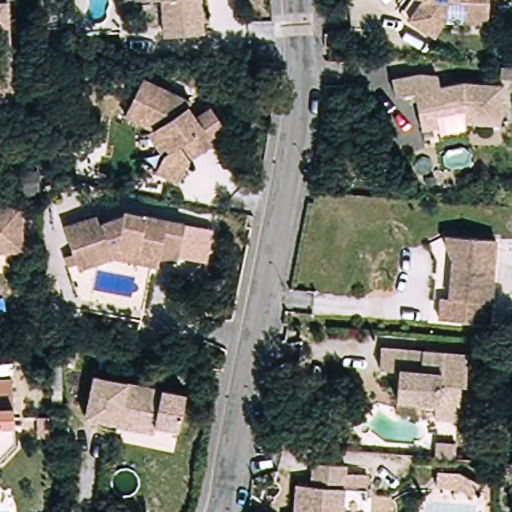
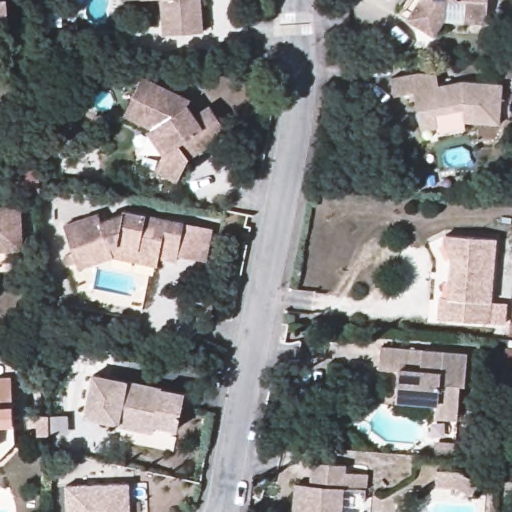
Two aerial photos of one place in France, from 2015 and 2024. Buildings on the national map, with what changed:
unchanged [(161,39),(158,1),(139,3),(139,0),(181,0),(196,0),(199,36),(161,39)]
unchanged [(425,12),(408,19),(401,0),(428,0),(425,12)]
unchanged [(466,23),(445,17),(449,0),(472,0),(466,23)]
unchanged [(8,4),(16,104),(0,105),(0,5),(8,4)]
unchanged [(422,131),(420,120),(415,93),(396,97),(392,81),(421,75),(437,76),(439,88),(463,83),(503,86),(500,126),(465,124),(464,111),(436,116),(438,129),(422,131)]
unchanged [(142,78),(190,100),(188,105),(196,115),(211,105),(229,130),(190,157),(179,180),(156,169),(164,152),(169,149),(152,128),(124,115),(142,78)]
unchanged [(21,211),(23,255),(0,256),(0,212),(21,211)]
unchanged [(116,261),(81,272),(79,266),(71,269),(68,260),(76,257),(67,230),(101,219),(103,225),(124,218),(125,214),(186,226),(178,265),(160,261),(159,270),(116,261)]
unchanged [(186,226),(213,232),(204,263),(179,258),(186,226)]
unchanged [(441,325),(442,303),(449,304),(453,262),(447,251),(447,242),(496,246),(490,329),(441,325)]
unchanged [(432,419),(433,404),(393,401),(396,372),(377,371),(378,350),(466,356),(463,386),(457,386),(456,405),(455,420),(432,419)]
unchanged [(6,457),(0,458),(0,379),(17,378),(19,423),(20,442),(6,457)]
unchanged [(104,428),(105,426),(72,419),(81,378),(171,396),(164,432),(141,427),(140,435),(104,428)]
unchanged [(419,444),(437,445),(436,457),(418,456),(419,444)]
unchanged [(310,491),(311,469),(343,471),(339,512),(292,512),(294,490),(310,491)]
new [(65,512),(64,486),(129,485),(130,512),(65,512)]

